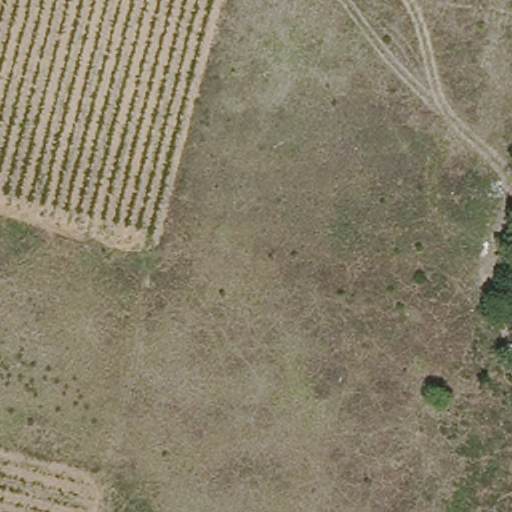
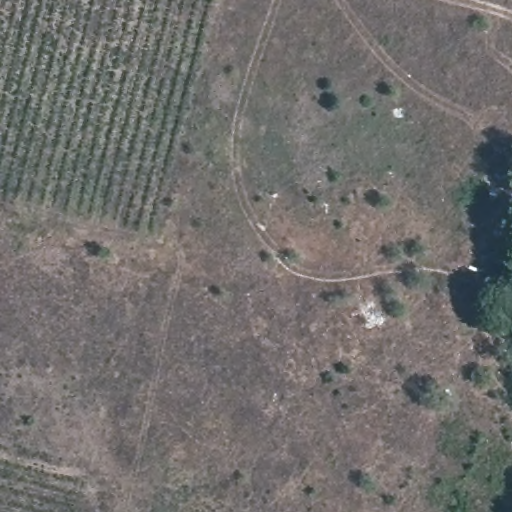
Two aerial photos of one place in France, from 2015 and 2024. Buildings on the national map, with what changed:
[]

